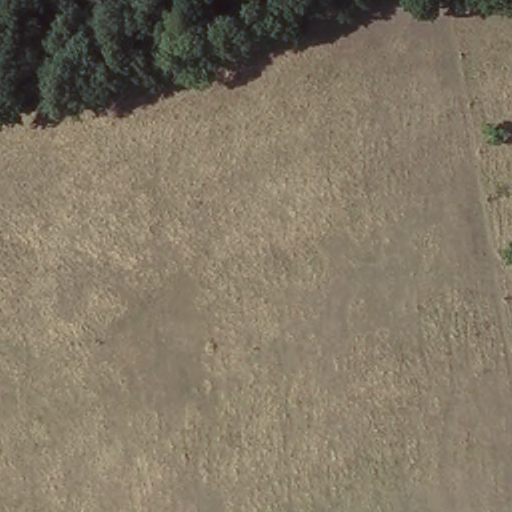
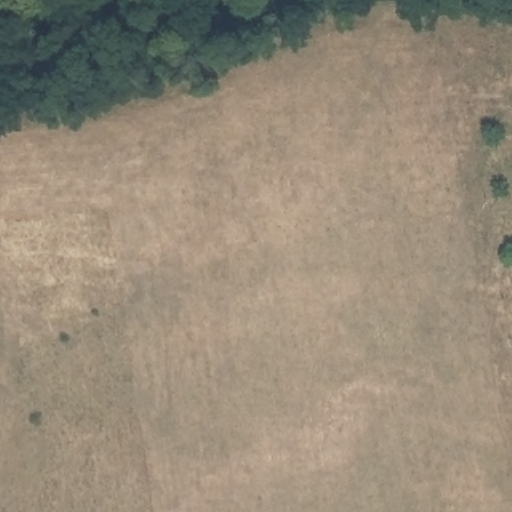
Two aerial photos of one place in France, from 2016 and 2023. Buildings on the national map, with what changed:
[]

